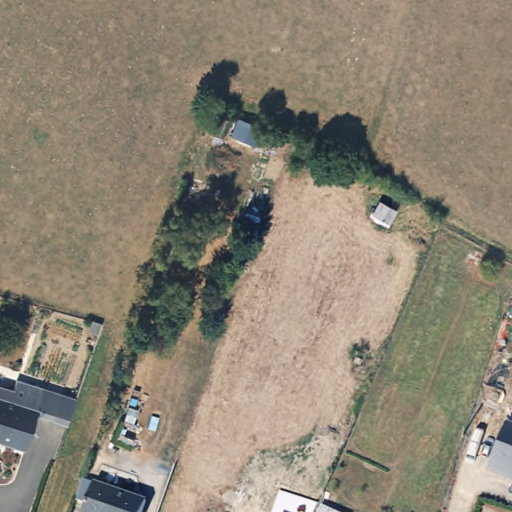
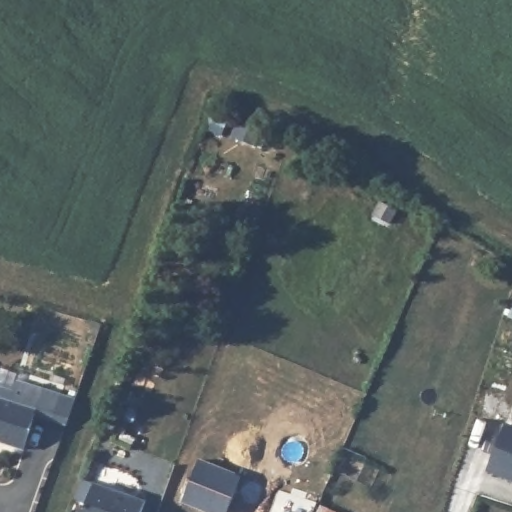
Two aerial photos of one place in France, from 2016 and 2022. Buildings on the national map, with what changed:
unchanged [(73,400),(64,425),(32,417),(23,453),(0,447),(0,393),(10,395),(13,384),(73,400)]
unchanged [(505,424),(512,427),(512,481),(487,471),(505,424)]
new [(240,474),(225,512),(207,512),(182,502),(200,458),(240,474)]
unchanged [(138,512),(80,512),(91,478),(143,495),(138,512)]
demolished [(243,494),(235,512),(197,512),(212,479),(240,490),(243,494)]
unchanged [(332,512),(313,512),(317,504),(332,512)]

